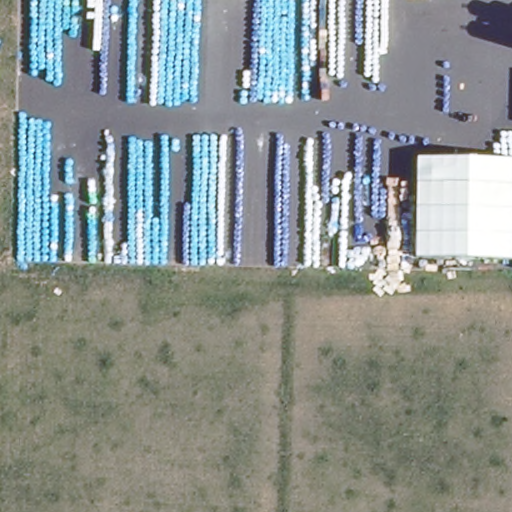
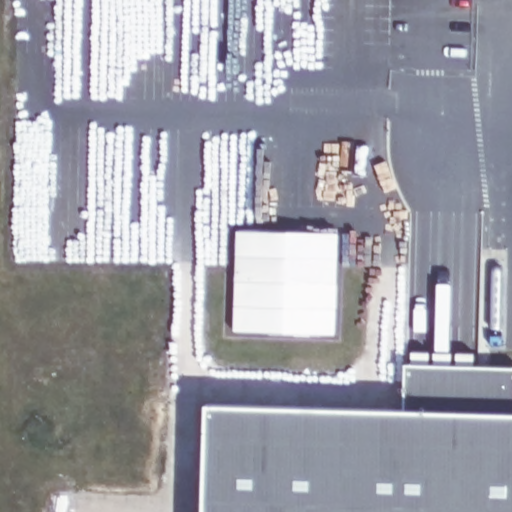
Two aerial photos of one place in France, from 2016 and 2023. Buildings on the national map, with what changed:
demolished [(415,255),(416,156),(512,159),(512,258),(415,255)]
new [(339,234),(336,335),(234,331),(237,232),(339,234)]
new [(207,405),(403,409),(405,365),(512,368),(512,512),(203,512),(207,405)]

